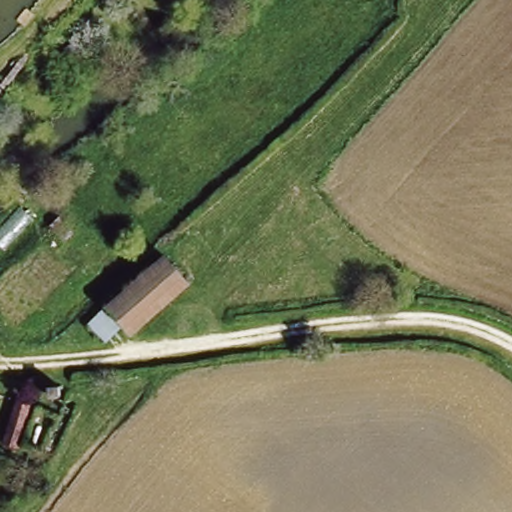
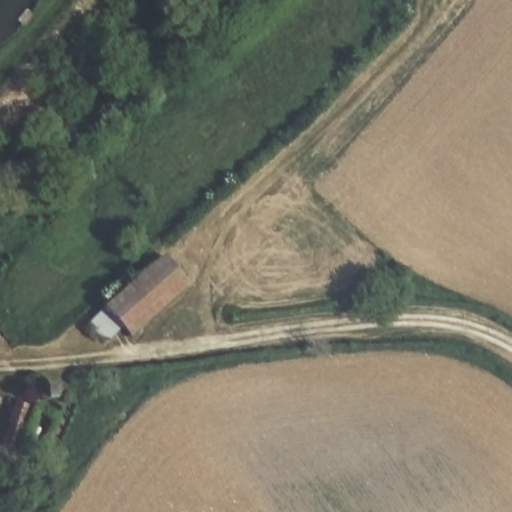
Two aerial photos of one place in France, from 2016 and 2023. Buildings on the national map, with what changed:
unchanged [(33,220),(2,250),(0,248),(0,230),(21,207),(33,220)]
unchanged [(195,282),(127,336),(118,325),(102,339),(86,321),(165,250),(195,282)]
unchanged [(35,401),(35,426),(20,426),(20,401),(35,401)]

